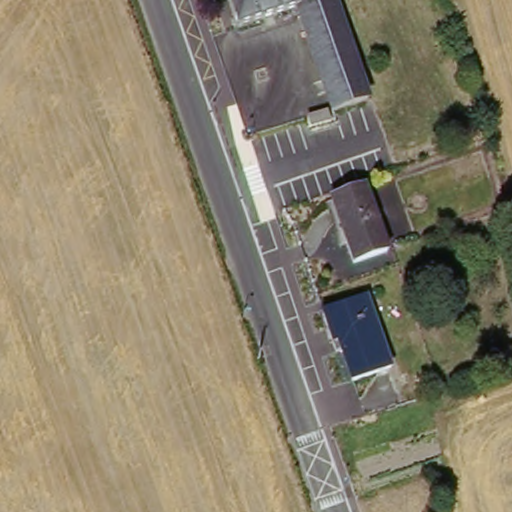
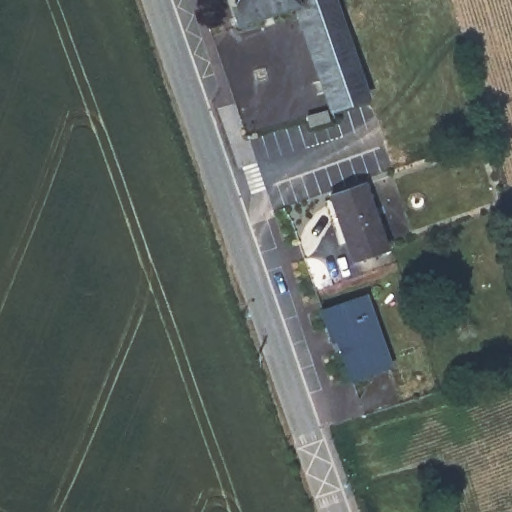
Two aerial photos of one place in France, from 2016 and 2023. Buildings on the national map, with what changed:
unchanged [(338,113),(301,12),(244,30),(233,0),(341,0),(376,101),(338,113)]
unchanged [(313,121),(332,114),(335,123),(316,130),(313,121)]
unchanged [(367,186),(392,249),(360,262),(335,199),(367,186)]
unchanged [(345,341),(341,342),(330,311),(373,297),(396,367),(359,381),(345,341)]
unchanged [(512,346),(512,363),(504,366),(502,362),(492,366),(487,356),(512,346)]

